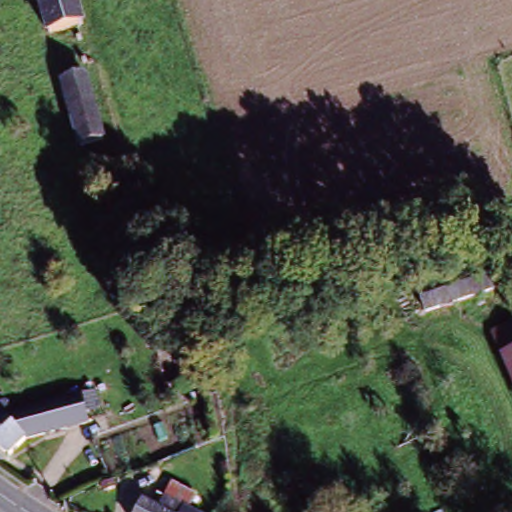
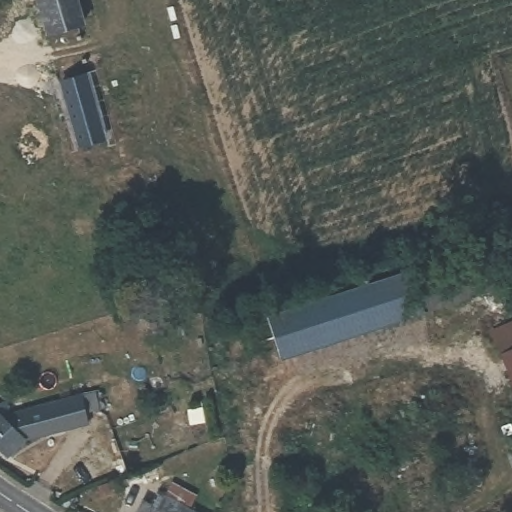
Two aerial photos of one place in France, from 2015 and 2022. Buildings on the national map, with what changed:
unchanged [(54,27),(45,0),(79,0),(85,17),(54,27)]
unchanged [(114,144),(91,151),(71,87),(91,80),(114,144)]
unchanged [(490,260),(499,286),(431,311),(420,286),(490,260)]
new [(409,268),(425,311),(281,357),(268,317),(409,268)]
unchanged [(493,332),(512,323),(512,376),(493,332)]
unchanged [(0,450),(0,424),(3,427),(35,416),(31,402),(61,391),(68,406),(73,403),(83,431),(26,448),(8,459),(0,450)]
unchanged [(166,505),(180,512),(162,512),(166,505)]
unchanged [(131,508),(140,512),(129,512),(131,508)]

